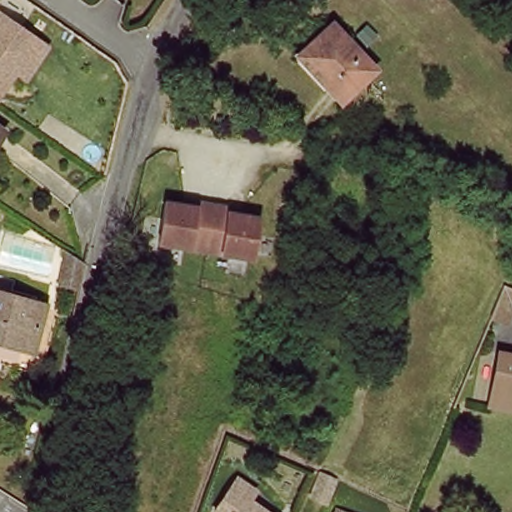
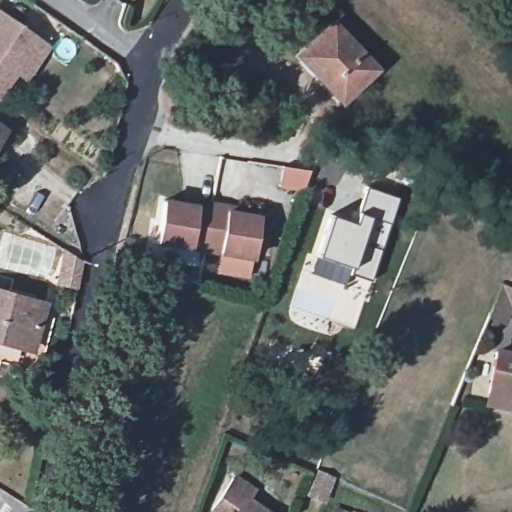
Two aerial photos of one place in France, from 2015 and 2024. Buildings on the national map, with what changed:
unchanged [(27,81),(17,75),(0,98),(0,11),(52,46),(27,81)]
unchanged [(294,54),(332,21),(375,69),(337,103),(294,54)]
unchanged [(0,138),(0,125),(6,129),(0,138)]
new [(284,164),(312,169),(305,188),(280,184),(284,164)]
new [(308,273),(313,255),(327,213),(352,223),(364,187),(397,198),(368,279),(350,274),(345,285),(308,273)]
unchanged [(196,208),(197,203),(230,209),(228,214),(259,219),(252,260),(158,244),(165,202),(196,208)]
unchanged [(68,244),(86,256),(80,285),(61,280),(68,244)]
unchanged [(512,284),(512,322),(496,315),(503,299),(510,283),(512,284)]
unchanged [(0,339),(0,291),(45,306),(37,330),(30,349),(20,346),(0,339)]
unchanged [(488,409),(491,395),(502,355),(512,357),(512,414),(488,409)]
unchanged [(237,475),(258,490),(253,499),(271,512),(209,512),(237,475)]
unchanged [(337,503),(361,512),(334,512),(337,503)]

